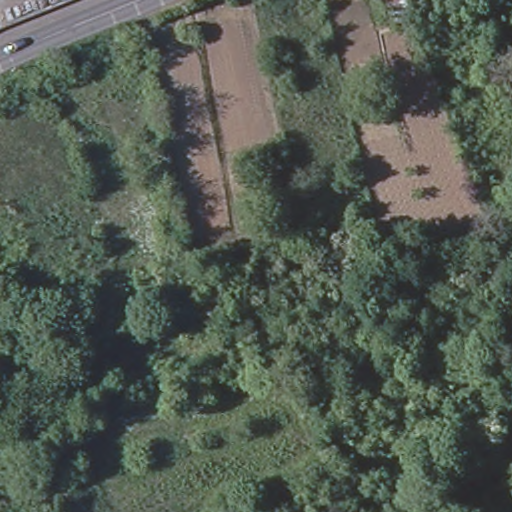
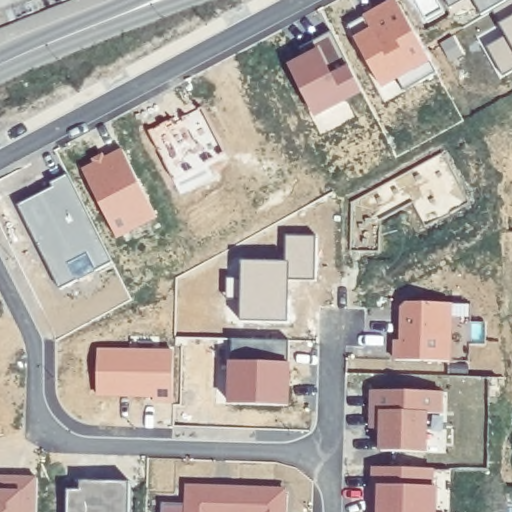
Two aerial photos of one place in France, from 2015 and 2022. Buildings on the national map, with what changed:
new [(452,11),(446,0),(473,0),(452,11)]
new [(474,0),(512,0),(512,3),(494,13),(484,18),(474,0)]
new [(422,86),(415,73),(384,90),(350,29),(369,18),(381,12),(399,2),(440,76),(422,86)]
new [(512,45),(494,13),(512,3),(512,45)]
new [(307,61),(302,52),(332,36),(334,35),(365,95),(318,118),(292,68),(320,54),(307,61)]
new [(494,60),(512,50),(512,76),(505,79),(494,60)]
new [(84,173),(124,153),(158,221),(119,242),(84,173)]
new [(62,293),(44,258),(40,250),(19,209),(55,191),(52,187),(70,178),(115,267),(98,275),(80,284),(62,293)]
new [(454,308),(452,365),(397,364),(397,346),(404,346),(405,312),(411,306),(454,308)]
new [(231,407),(233,342),(291,344),(288,409),(231,407)]
new [(174,405),(155,404),(155,399),(132,399),(132,392),(121,392),(121,398),(98,398),(99,354),(175,356),(174,405)]
new [(445,396),(444,417),(429,417),(428,456),(383,455),(385,416),(384,433),(373,432),(374,416),(375,395),(445,396)]
new [(452,512),(381,512),(374,511),(375,471),(453,473),(452,512)]
new [(38,482),(37,512),(0,512),(0,482),(38,482)]
new [(81,493),(81,484),(131,485),(131,490),(131,512),(68,512),(68,493),(81,493)]
new [(287,512),(162,512),(162,506),(186,507),(187,488),(273,491),(288,496),(287,512)]
new [(381,512),(375,512),(375,511),(381,512)]

